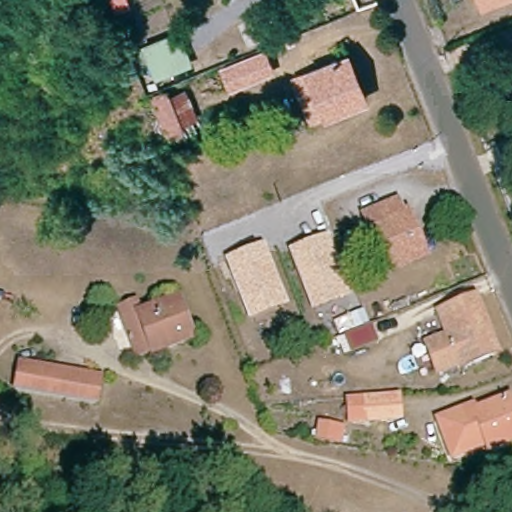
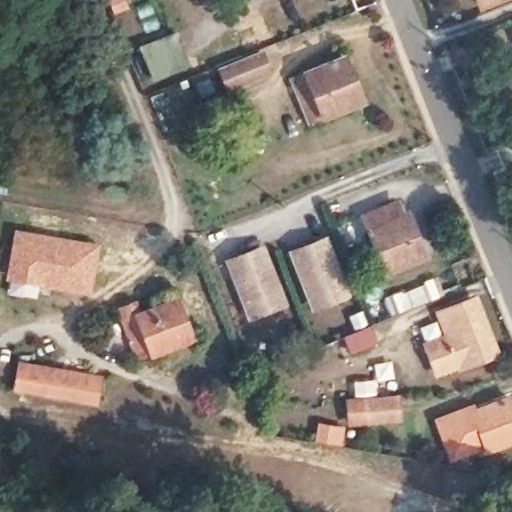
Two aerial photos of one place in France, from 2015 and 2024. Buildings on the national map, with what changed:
unchanged [(474,0),(503,0),(478,10),(474,0)]
unchanged [(136,39),(177,22),(192,60),(149,77),(136,39)]
unchanged [(262,52),(269,71),(227,87),(220,67),(262,52)]
unchanged [(293,76),(345,55),(362,98),(309,117),(301,100),(295,84),(293,76)]
unchanged [(141,98),(182,84),(195,131),(156,142),(141,98)]
unchanged [(387,269),(364,216),(396,202),(402,217),(409,215),(425,257),(388,271),(387,269)]
new [(14,228),(100,242),(91,296),(40,287),(38,299),(6,293),(8,281),(5,280),(14,228)]
unchanged [(352,296),(312,311),(289,250),(330,234),(352,296)]
unchanged [(291,305),(249,321),(227,258),(266,242),(291,305)]
unchanged [(457,367),(453,357),(432,366),(423,342),(444,333),(436,309),(468,297),(476,317),(483,315),(488,329),(481,330),(489,355),(457,367)]
unchanged [(189,343),(135,361),(121,322),(116,308),(130,303),(134,316),(173,300),(189,343)]
unchanged [(20,362),(76,371),(100,376),(97,403),(64,398),(13,390),(20,362)]
unchanged [(386,419),(355,421),(353,402),(385,400),(386,419)]
unchanged [(443,443),(435,421),(468,410),(471,415),(506,402),(512,417),(512,442),(484,452),(482,448),(464,455),(449,460),(443,443)]

